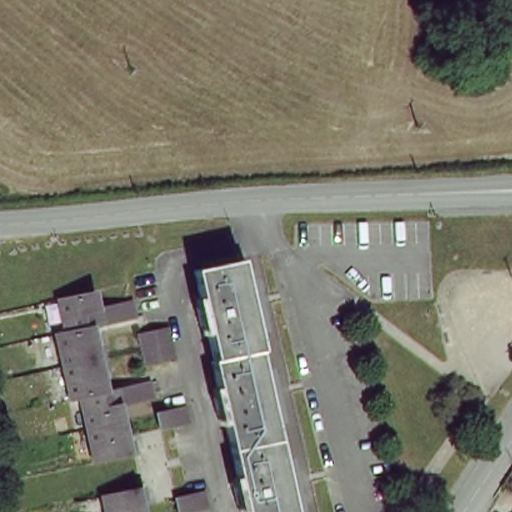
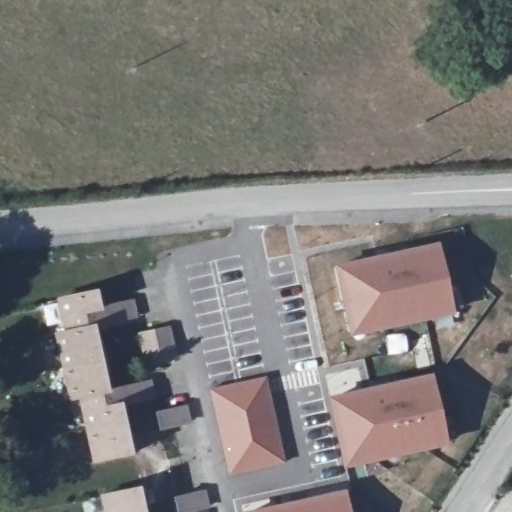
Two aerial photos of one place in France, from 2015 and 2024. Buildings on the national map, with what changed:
new [(335,265),(438,243),(453,315),(351,335),(335,265)]
demolished [(512,257),(512,270),(511,270),(512,257)]
demolished [(238,262),(293,512),(245,512),(192,272),(238,262)]
unchanged [(100,322),(90,324),(95,345),(99,345),(104,366),(100,367),(105,390),(114,387),(126,440),(130,438),(133,450),(95,459),(80,395),(70,396),(55,332),(65,330),(58,297),(92,290),(100,322)]
unchanged [(130,296),(133,311),(105,318),(102,302),(130,296)]
unchanged [(137,329),(147,327),(167,322),(173,353),(153,357),(145,359),(137,329)]
new [(267,375),(285,462),(228,475),(208,388),(267,375)]
new [(328,398),(432,375),(447,445),(345,467),(328,398)]
unchanged [(148,376),(152,392),(123,398),(120,383),(148,376)]
unchanged [(162,406),(163,406),(184,401),(187,416),(166,421),(159,423),(155,407),(162,406)]
unchanged [(142,512),(106,512),(102,491),(140,482),(142,494),(138,495),(142,512)]
unchanged [(180,491),(203,486),(207,501),(183,506),(177,508),(174,492),(180,491)]
new [(349,512),(259,512),(345,493),(349,512)]
unchanged [(511,512),(509,512),(510,511),(511,512)]

